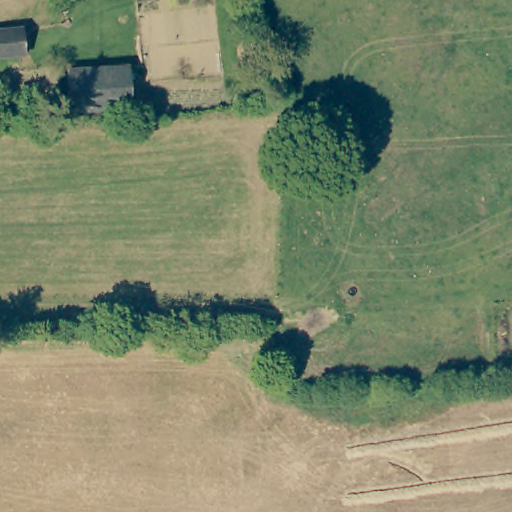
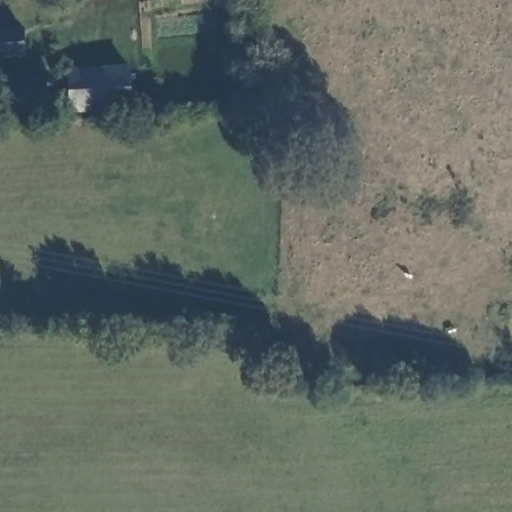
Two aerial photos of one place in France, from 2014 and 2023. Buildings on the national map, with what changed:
unchanged [(22,27),(25,55),(0,57),(0,30),(22,27)]
unchanged [(127,67),(130,107),(70,111),(67,70),(127,67)]

